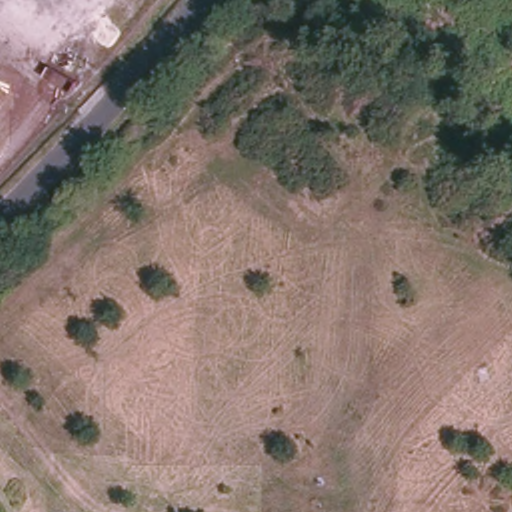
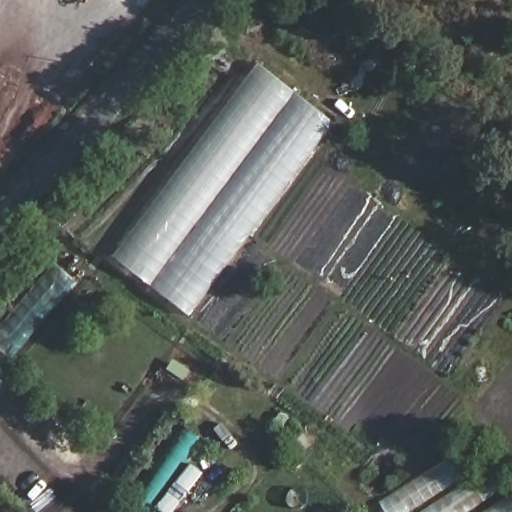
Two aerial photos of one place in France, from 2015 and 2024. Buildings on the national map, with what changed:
new [(190,317),(114,257),(257,64),(336,124),(190,317)]

